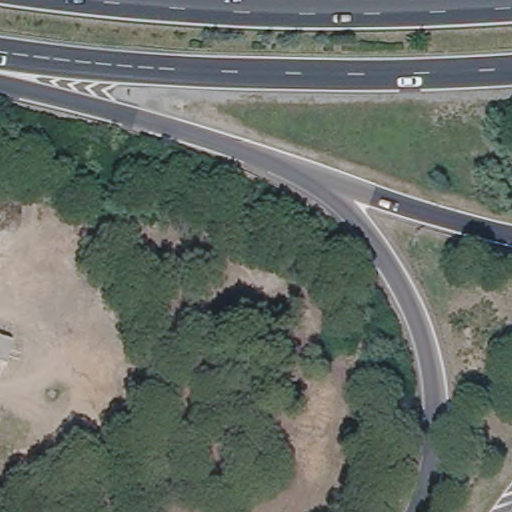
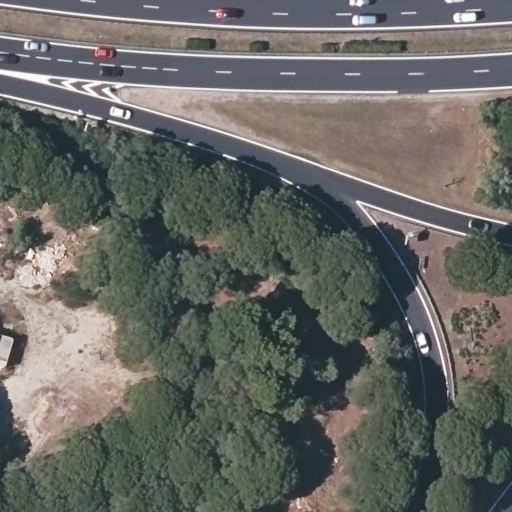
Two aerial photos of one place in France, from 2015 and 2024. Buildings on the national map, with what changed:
unchanged [(14,343),(6,365),(0,363),(0,338),(14,343)]

